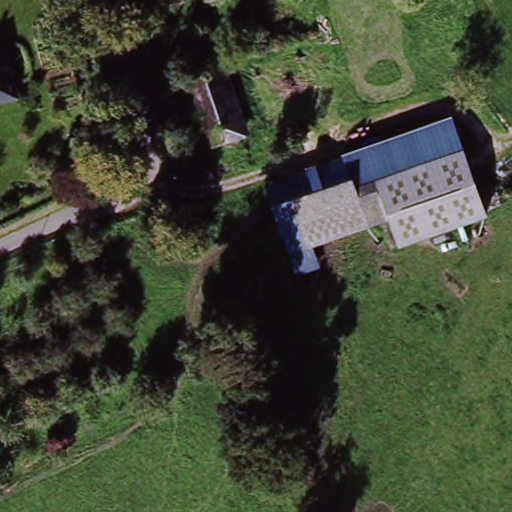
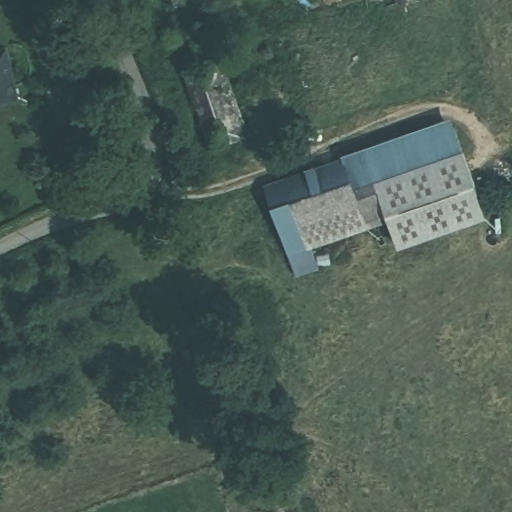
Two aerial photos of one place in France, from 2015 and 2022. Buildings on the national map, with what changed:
unchanged [(396,4),(395,0),(418,0),(418,3),(396,4)]
unchanged [(13,105),(0,108),(0,50),(4,50),(13,105)]
unchanged [(250,135),(223,144),(197,70),(225,61),(250,135)]
unchanged [(92,145),(70,151),(56,106),(77,99),(92,145)]
unchanged [(450,123),(459,150),(379,179),(370,151),(450,123)]
unchanged [(482,222),(393,251),(384,221),(281,254),(259,187),(339,161),(367,153),(377,182),(459,155),(482,222)]

